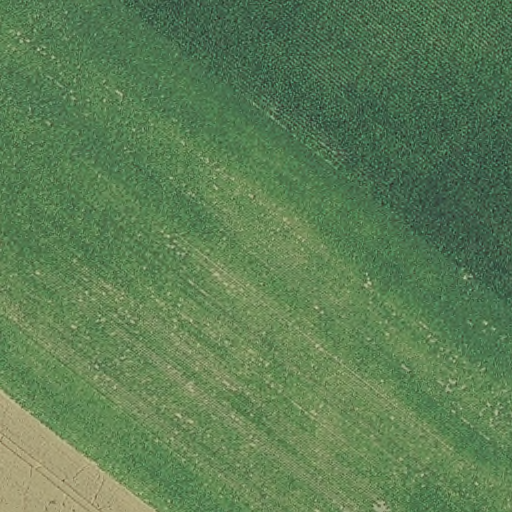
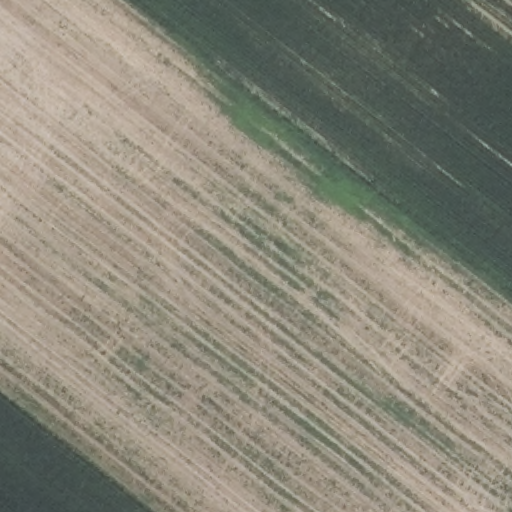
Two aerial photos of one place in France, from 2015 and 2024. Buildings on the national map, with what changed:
[]

